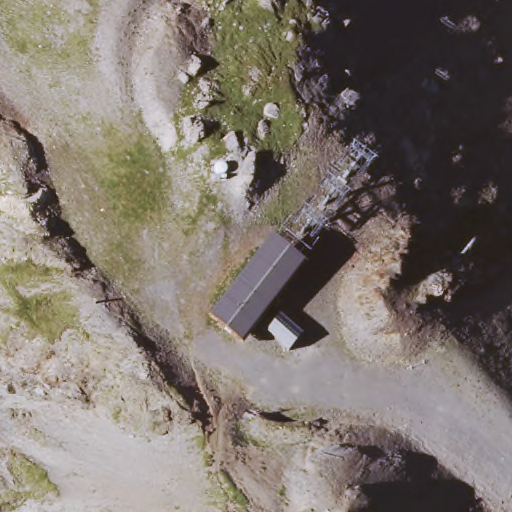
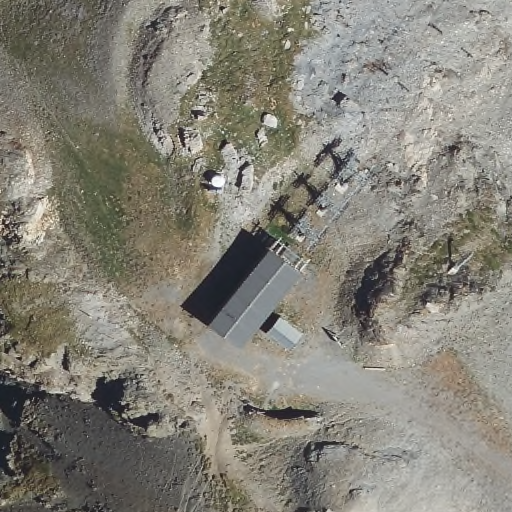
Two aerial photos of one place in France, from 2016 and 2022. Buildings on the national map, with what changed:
unchanged [(285,260),(302,273),(241,348),(208,324),(268,247),(285,260)]
unchanged [(267,335),(279,320),(302,338),(289,353),(267,335)]

